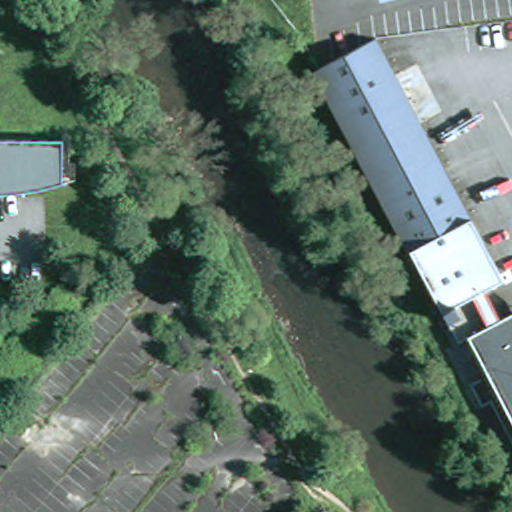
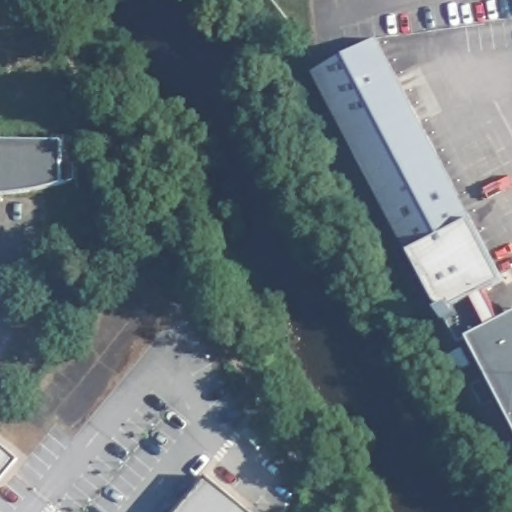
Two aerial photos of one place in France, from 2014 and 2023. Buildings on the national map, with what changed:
unchanged [(508,284),(489,294),(460,309),(465,319),(451,327),(319,76),(356,56),(380,43),(508,284)]
unchanged [(63,141),(62,184),(25,189),(0,190),(0,142),(63,141)]
unchanged [(451,327),(465,319),(460,309),(489,294),(502,320),(500,321),(460,343),(451,327)]
unchanged [(485,412),(473,390),(482,385),(460,343),(500,321),(502,320),(512,338),(512,439),(495,407),(485,412)]
new [(14,457),(0,474),(0,445),(14,457)]
new [(250,512),(176,512),(206,475),(250,512)]

